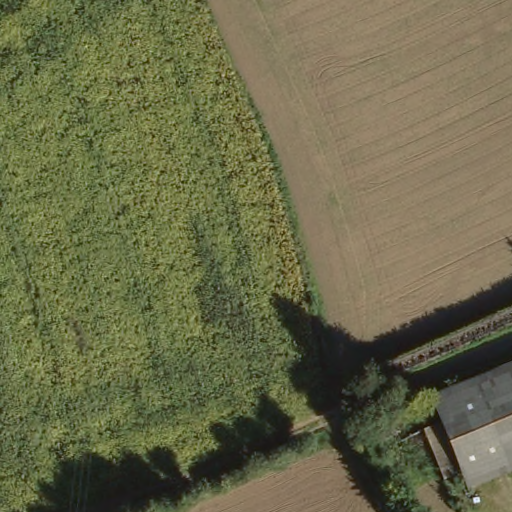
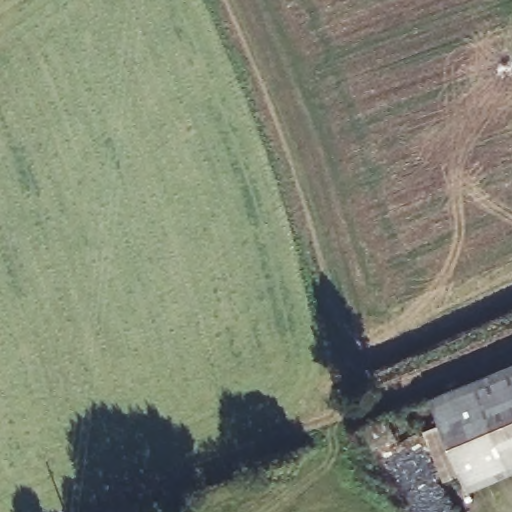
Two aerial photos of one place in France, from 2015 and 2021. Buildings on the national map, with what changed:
unchanged [(459,482),(441,486),(423,433),(433,429),(423,403),(512,367),(512,474),(463,492),(459,482)]

